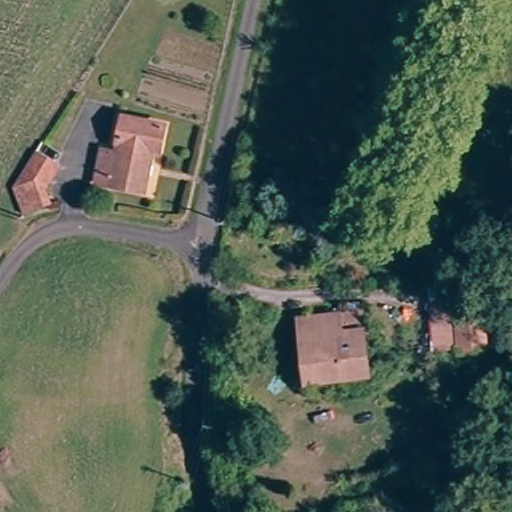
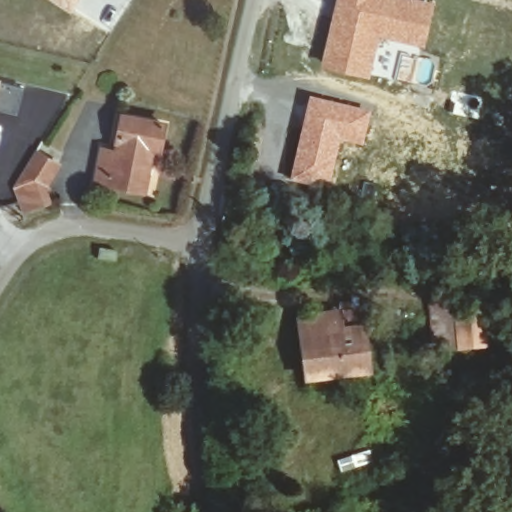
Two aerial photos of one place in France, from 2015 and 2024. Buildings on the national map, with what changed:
new [(71,14),(49,0),(80,0),(71,14)]
new [(335,0),(432,0),(436,1),(425,49),(381,37),(369,79),(319,67),(335,0)]
new [(15,82),(8,108),(0,106),(0,78),(15,82)]
new [(308,96),(372,111),(362,148),(341,143),(329,191),(287,181),(308,96)]
unchanged [(146,191),(96,182),(104,151),(120,154),(128,118),(166,125),(162,148),(157,147),(146,191)]
unchanged [(40,206),(15,216),(4,191),(26,155),(46,169),(35,187),(40,206)]
unchanged [(442,359),(437,306),(436,304),(465,301),(466,313),(471,356),(442,359)]
unchanged [(375,370),(313,377),(306,315),(368,309),(375,370)]

